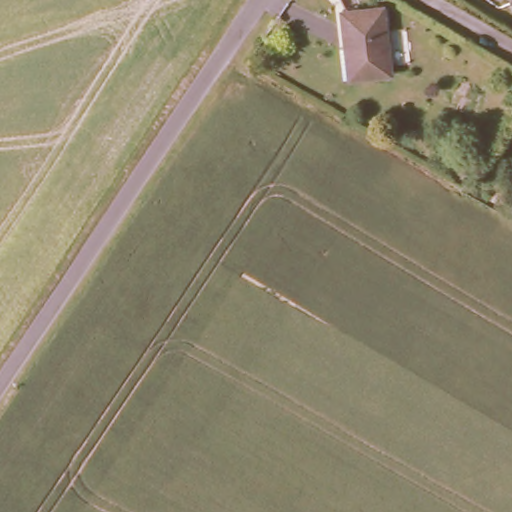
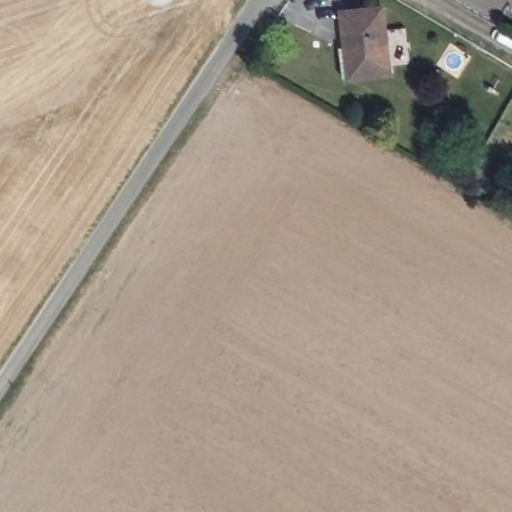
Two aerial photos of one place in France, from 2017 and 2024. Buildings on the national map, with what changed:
unchanged [(511,1),(511,0),(512,0),(512,1),(511,1)]
unchanged [(373,12),(387,78),(348,87),(333,22),(373,12)]

